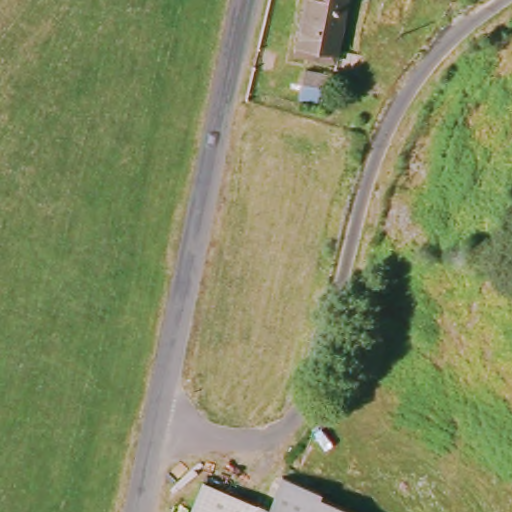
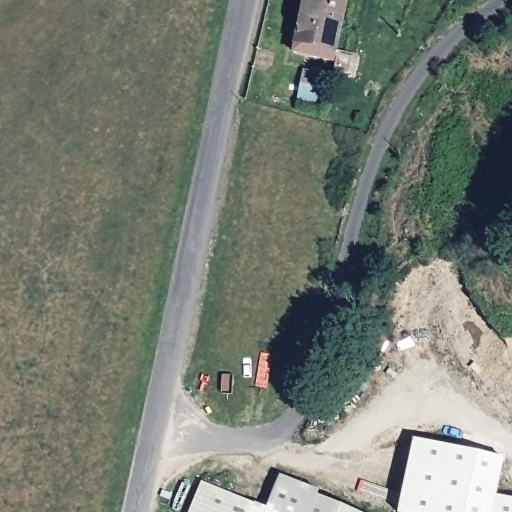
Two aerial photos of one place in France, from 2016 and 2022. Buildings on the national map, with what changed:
unchanged [(329,60),(290,54),(300,0),(343,0),(329,60)]
new [(505,457),(498,495),(512,498),(512,512),(398,512),(415,438),(505,457)]
unchanged [(259,505),(270,509),(283,477),(318,491),(319,496),(356,512),(194,512),(206,483),(259,505)]

